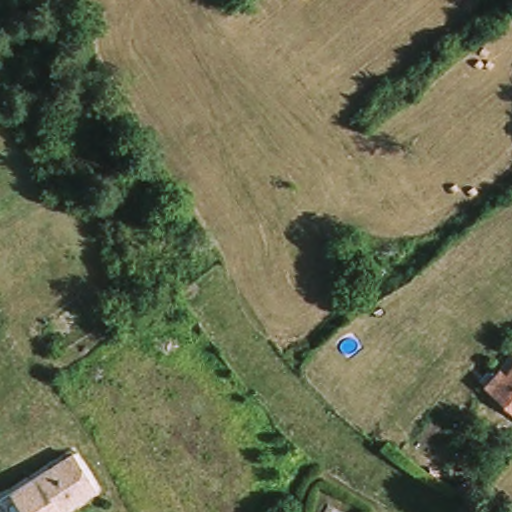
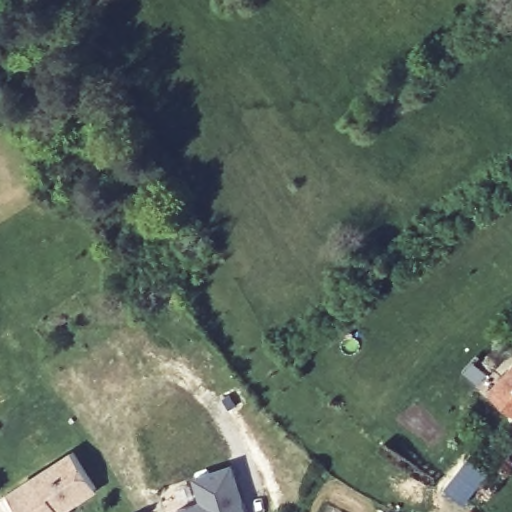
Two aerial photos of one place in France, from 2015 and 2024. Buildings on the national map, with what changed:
unchanged [(480,384),(496,366),(502,373),(512,362),(512,410),(487,389),(480,384)]
unchanged [(4,498),(15,491),(77,451),(100,487),(65,508),(66,512),(12,512),(4,498)]
new [(199,499),(193,475),(231,463),(244,512),(176,512),(174,507),(199,499)]

